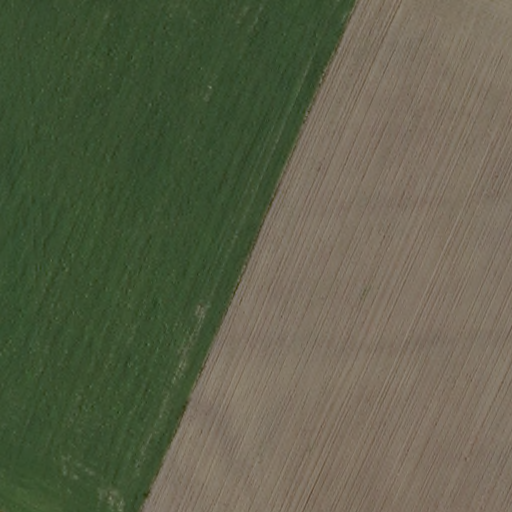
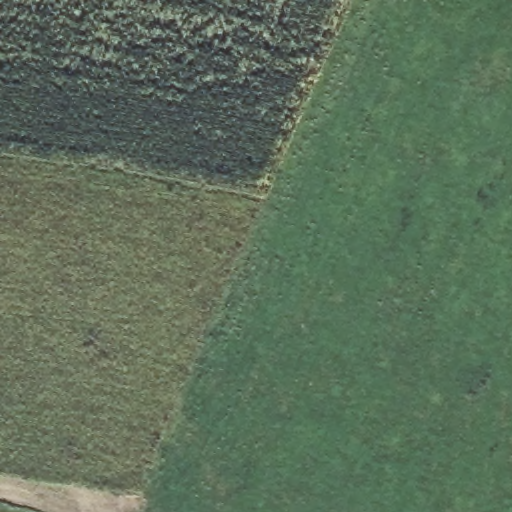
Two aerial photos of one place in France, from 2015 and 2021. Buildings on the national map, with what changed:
[]

